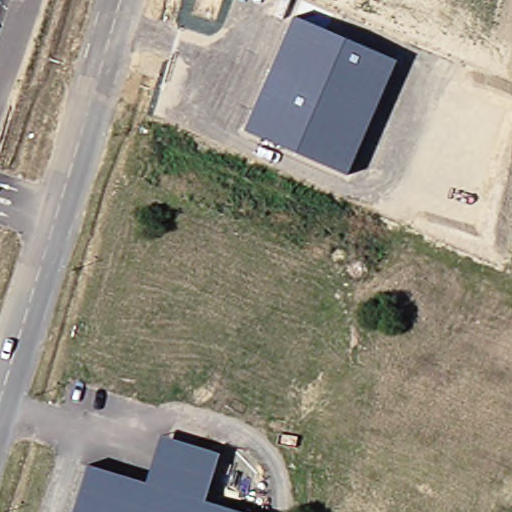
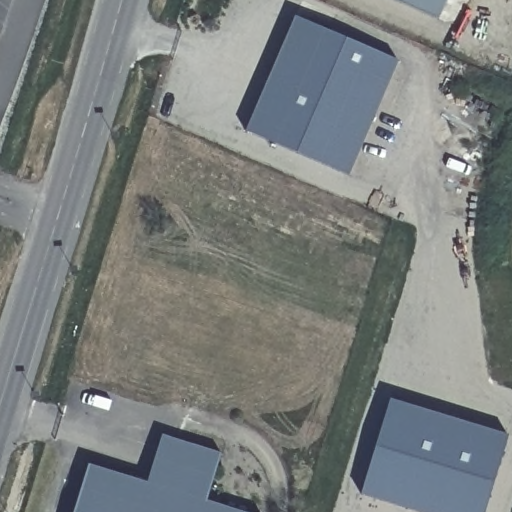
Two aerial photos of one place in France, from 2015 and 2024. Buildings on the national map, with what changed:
new [(406,0),(449,0),(442,16),(406,0)]
unchanged [(245,130),(295,16),(397,61),(348,176),(245,130)]
new [(361,496),(390,400),(508,436),(485,512),(414,512),(361,496)]
unchanged [(209,502),(240,512),(75,512),(90,465),(149,483),(164,436),(174,439),(224,455),(209,502)]

